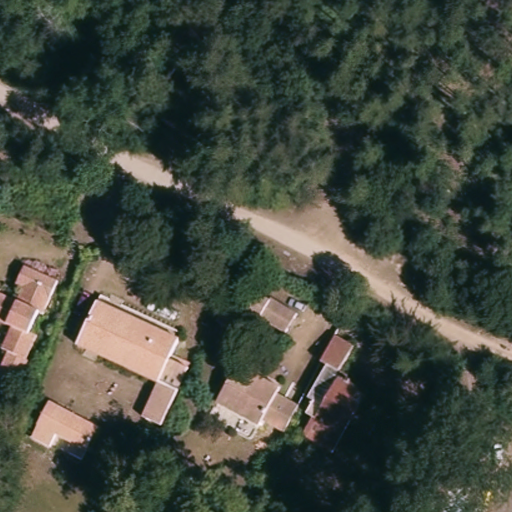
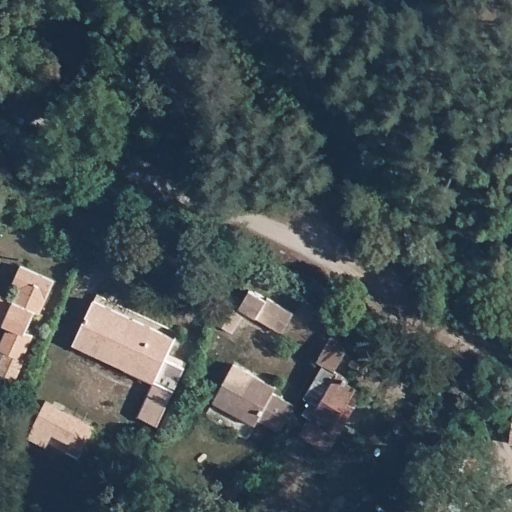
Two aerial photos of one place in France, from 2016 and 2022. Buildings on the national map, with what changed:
unchanged [(35,310),(26,330),(34,333),(24,358),(0,349),(0,348),(9,326),(0,323),(0,295),(13,300),(19,286),(11,283),(19,264),(53,278),(40,312),(35,310)]
unchanged [(242,296),(248,285),(265,295),(266,293),(291,308),(280,328),(244,307),(230,330),(209,317),(214,308),(227,287),(242,296)]
unchanged [(124,364),(71,340),(76,331),(91,296),(174,334),(164,353),(181,361),(183,362),(155,421),(152,419),(136,411),(146,390),(153,377),(124,364)]
unchanged [(352,347),(339,371),(356,381),(353,385),(360,390),(336,430),(309,415),(316,402),(308,397),(326,366),(320,362),(334,337),(352,347)]
unchanged [(257,415),(253,422),(211,398),(232,360),(274,384),(271,389),(292,400),(287,409),(281,420),(278,427),(257,415)]
unchanged [(94,426),(81,447),(33,420),(45,399),(94,426)]

